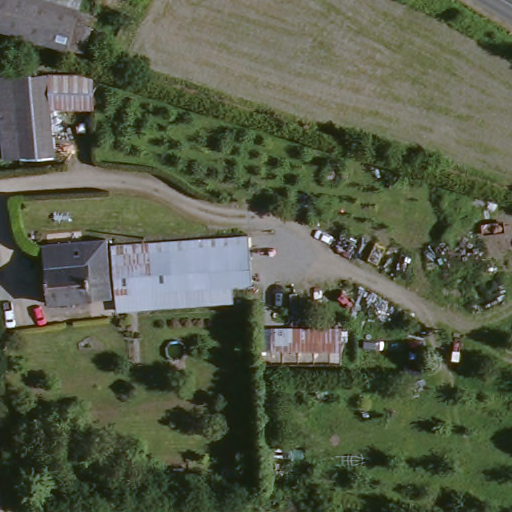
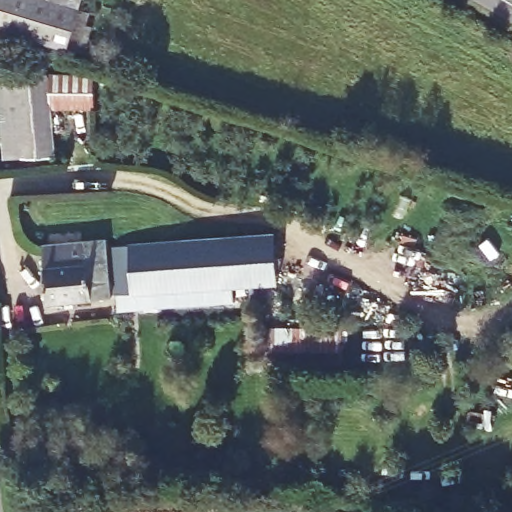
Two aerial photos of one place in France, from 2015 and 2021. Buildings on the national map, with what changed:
unchanged [(0,0),(82,0),(67,43),(0,22),(0,0)]
unchanged [(54,157),(8,162),(0,94),(0,80),(45,75),(54,157)]
unchanged [(54,295),(47,294),(48,235),(111,237),(110,295),(74,295),(54,295)]
unchanged [(249,245),(248,298),(114,295),(116,243),(249,245)]

